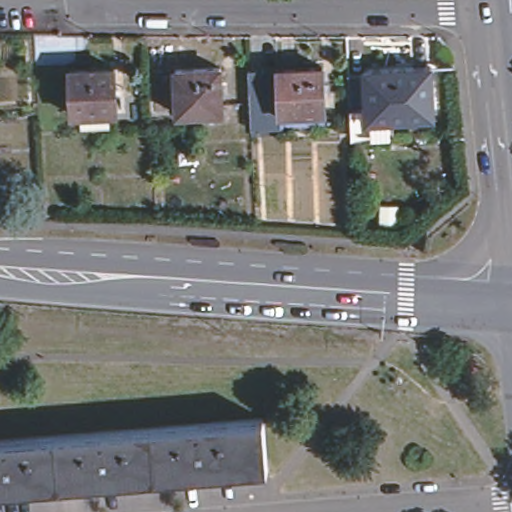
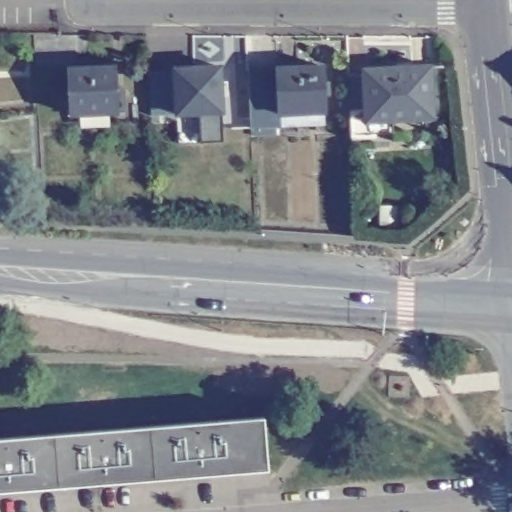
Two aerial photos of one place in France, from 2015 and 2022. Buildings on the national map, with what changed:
unchanged [(115,115),(71,116),(70,71),(114,70),(115,115)]
unchanged [(220,115),(175,116),(173,71),(219,70),(220,115)]
unchanged [(321,70),(323,116),(277,116),(276,71),(321,70)]
unchanged [(276,71),(277,116),(277,130),(251,131),(248,72),(276,71)]
unchanged [(370,135),(370,119),(370,114),(356,114),(355,80),(368,79),(368,74),(433,71),(435,116),(391,118),(391,135),(370,135)]
unchanged [(0,494),(0,442),(213,424),(225,424),(260,420),(261,425),(265,473),(0,494)]

